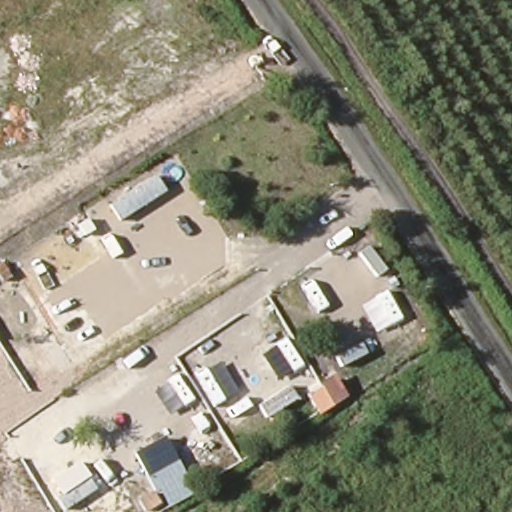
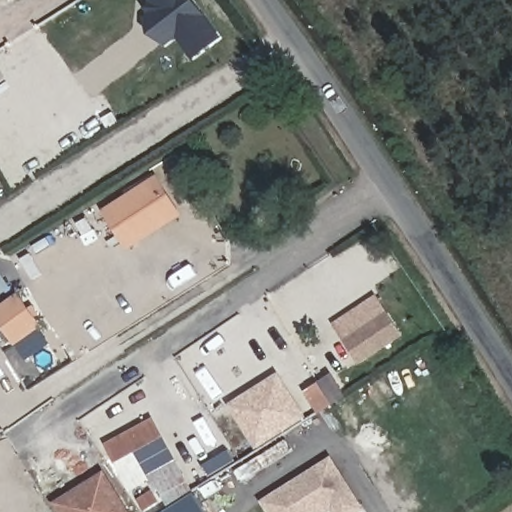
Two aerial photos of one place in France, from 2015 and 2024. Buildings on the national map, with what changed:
new [(222,40),(194,61),(177,39),(162,50),(141,21),(155,10),(147,0),(184,0),(189,6),(195,3),(222,40)]
new [(159,172),(186,216),(127,248),(103,205),(159,172)]
new [(12,295),(41,328),(14,347),(0,328),(0,306),(12,295)]
new [(387,311),(403,333),(358,362),(344,339),(387,311)]
new [(256,452),(227,406),(280,374),(307,419),(256,452)]
new [(333,379),(344,397),(318,413),(307,395),(333,379)]
new [(155,416),(166,435),(135,452),(150,483),(130,494),(105,445),(155,416)]
unchanged [(166,435),(196,493),(169,507),(160,489),(155,492),(150,483),(135,452),(166,435)]
new [(330,458),(366,507),(357,512),(266,512),(260,501),(330,458)]
new [(54,504),(105,472),(130,512),(58,512),(54,504)]
new [(194,494),(206,512),(165,512),(194,494)]

